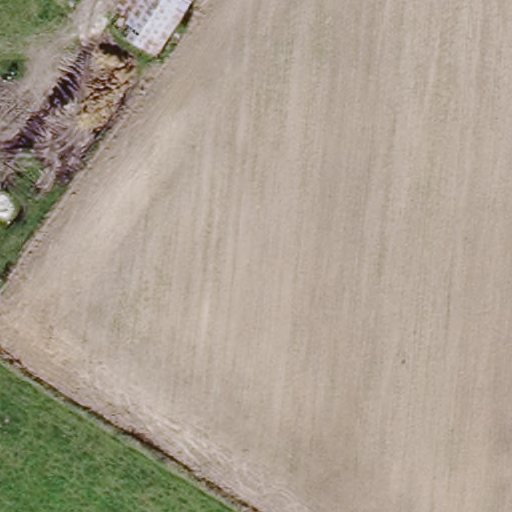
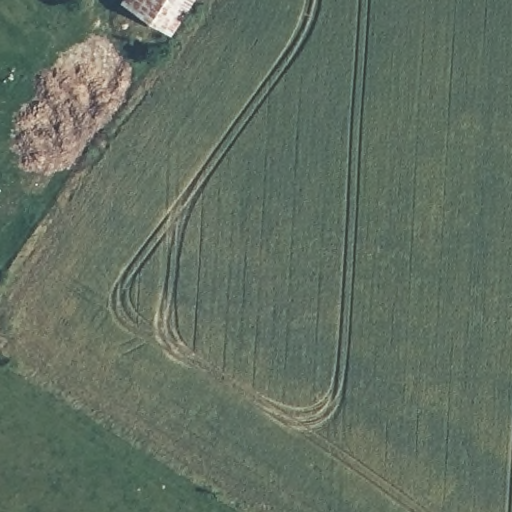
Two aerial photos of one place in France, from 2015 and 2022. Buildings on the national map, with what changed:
unchanged [(124,31),(143,0),(186,0),(169,27),(156,51),(133,37),(124,31)]

